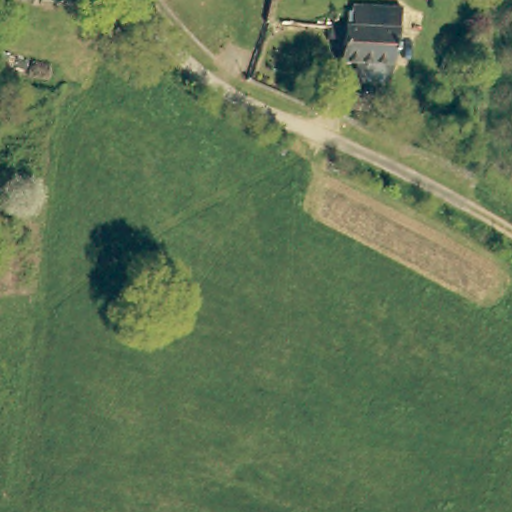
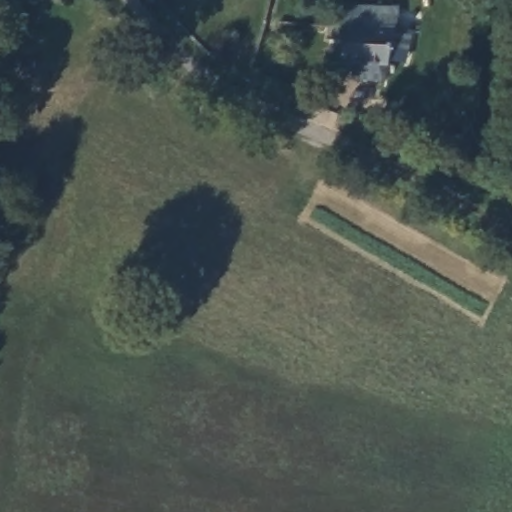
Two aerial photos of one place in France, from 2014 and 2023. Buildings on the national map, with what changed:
unchanged [(379,81),(353,80),(351,76),(350,62),(335,62),(335,38),(323,38),(324,24),(344,25),(344,6),(348,7),(394,8),(393,29),(383,78),(379,81)]

